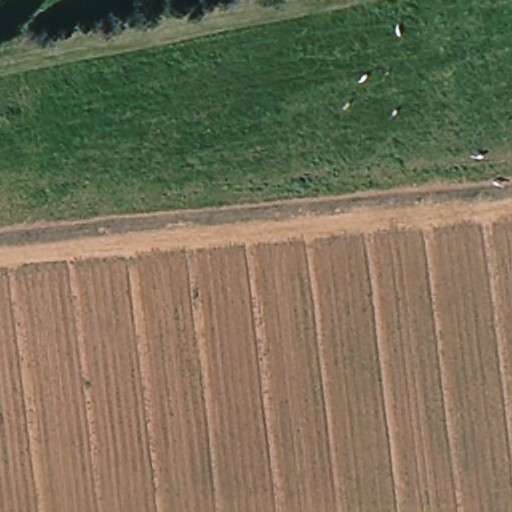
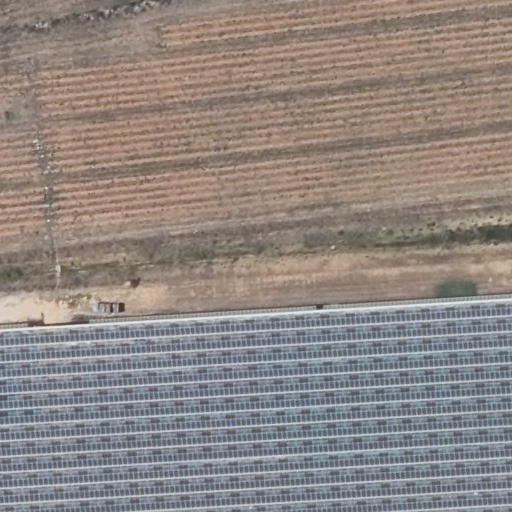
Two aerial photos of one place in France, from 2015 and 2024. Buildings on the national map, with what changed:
new [(512,301),(512,512),(0,512),(0,333),(512,301)]

